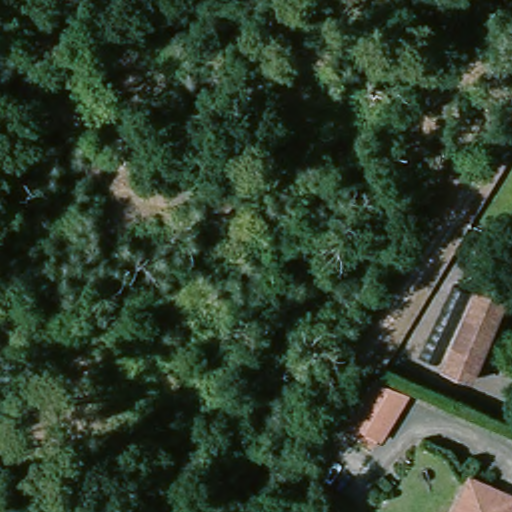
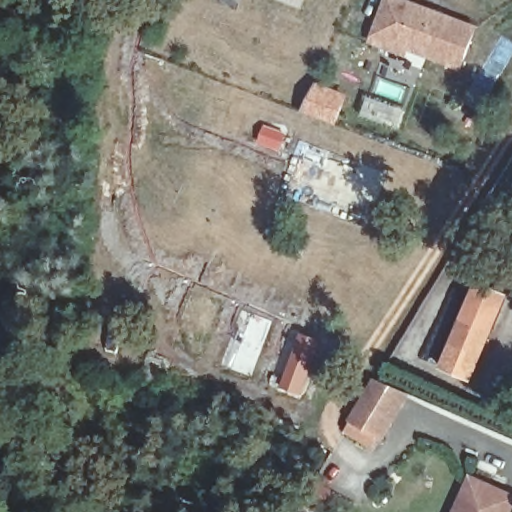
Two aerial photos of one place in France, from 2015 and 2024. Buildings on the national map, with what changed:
new [(383,0),(408,0),(478,26),(461,70),(407,50),(405,55),(368,41),(383,0)]
unchanged [(453,371),(433,363),(470,282),(487,289),(453,371)]
unchanged [(453,371),(487,289),(512,300),(512,314),(482,382),(481,383),(453,371)]
unchanged [(342,431),(347,422),(375,378),(407,392),(386,441),(383,449),(342,431)]
unchanged [(470,472),(512,491),(512,507),(510,512),(452,512),(470,472)]

